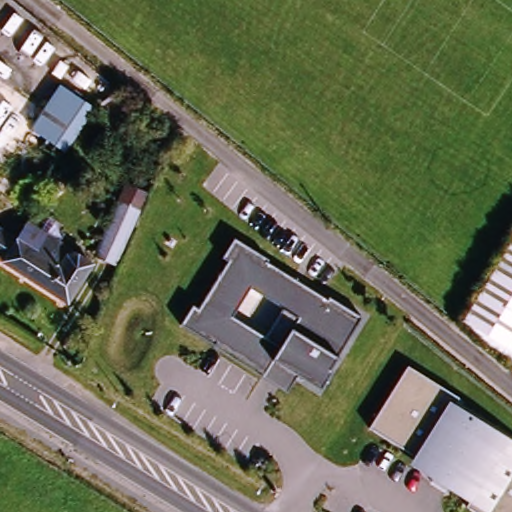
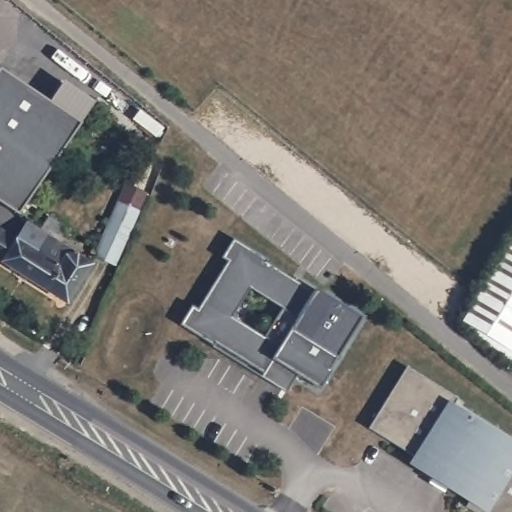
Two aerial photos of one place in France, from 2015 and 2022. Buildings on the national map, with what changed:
new [(0,201),(0,69),(1,68),(49,101),(64,80),(96,101),(79,123),(17,212),(0,201)]
demolished [(95,109),(65,153),(32,129),(61,86),(95,109)]
unchanged [(147,193),(115,265),(95,256),(127,185),(147,193)]
unchanged [(50,235),(47,240),(57,240),(72,249),(47,288),(0,258),(0,218),(5,209),(50,235)]
unchanged [(512,239),(512,352),(460,321),(512,239)]
unchanged [(362,319),(337,358),(320,388),(299,375),(289,390),(183,325),(194,307),(200,310),(230,261),(224,257),(235,240),(362,319)]
unchanged [(455,405),(512,441),(512,512),(475,512),(469,508),(472,503),(408,464),(414,455),(370,428),(408,366),(459,399),(455,405)]

